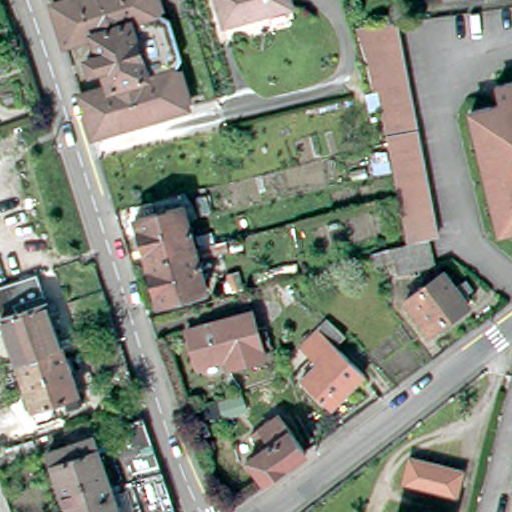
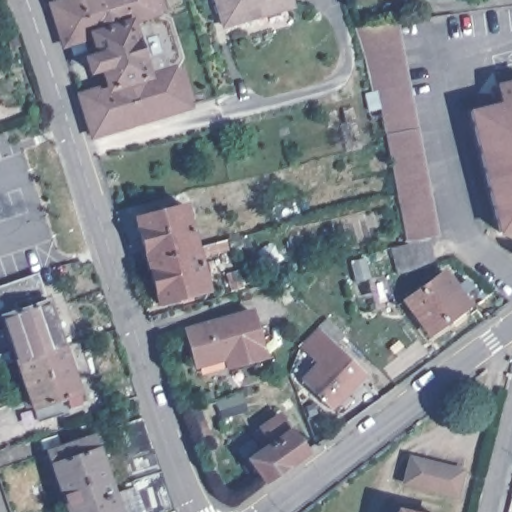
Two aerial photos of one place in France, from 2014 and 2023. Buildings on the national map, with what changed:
unchanged [(169,15),(180,53),(176,63),(188,101),(92,131),(80,94),(80,90),(107,81),(102,65),(90,68),(85,55),(98,51),(92,33),(64,41),(62,38),(51,0),(157,0),(160,10),(169,15)]
unchanged [(225,25),(217,0),(288,0),(290,6),(225,25)]
unchanged [(405,52),(372,58),(364,60),(354,23),(375,20),(399,16),(405,52)]
unchanged [(372,58),(405,52),(438,233),(429,235),(412,238),(407,239),(396,189),(386,135),(378,88),(370,89),(364,60),(372,58)]
unchanged [(499,228),(470,106),(501,99),(500,95),(494,93),(492,88),(495,81),(512,78),(512,225),(499,228)]
unchanged [(131,213),(179,200),(190,243),(142,256),(131,213)]
unchanged [(407,239),(412,238),(429,235),(435,260),(395,269),(392,254),(374,259),(370,249),(407,239)]
unchanged [(190,243),(201,286),(153,299),(142,256),(190,243)]
unchanged [(429,334),(405,300),(444,271),(455,287),(467,278),(474,288),(462,297),(469,305),(429,334)]
unchanged [(0,311),(26,302),(43,295),(60,341),(14,357),(12,352),(0,317),(0,311)]
unchanged [(262,359),(227,368),(225,359),(196,366),(187,330),(252,313),(262,359)]
unchanged [(345,337),(335,346),(364,374),(330,408),(300,380),(317,362),(300,347),(327,319),(345,337)]
unchanged [(78,394),(59,401),(60,404),(45,409),(34,412),(30,401),(14,357),(60,341),(78,394)]
unchanged [(292,460),(264,481),(252,465),(247,467),(245,462),(262,449),(252,434),(277,415),(305,452),(294,460),(292,460)]
unchanged [(127,481),(111,429),(140,419),(159,471),(127,481)]
unchanged [(51,455),(95,441),(114,497),(71,512),(70,512),(51,455)]
unchanged [(455,496),(404,483),(410,459),(462,471),(455,496)]
unchanged [(172,512),(137,512),(129,487),(127,481),(159,471),(172,512)]
unchanged [(114,497),(119,512),(71,512),(114,497)]

